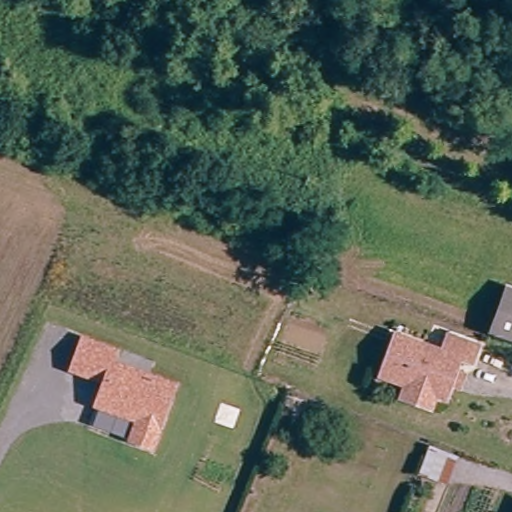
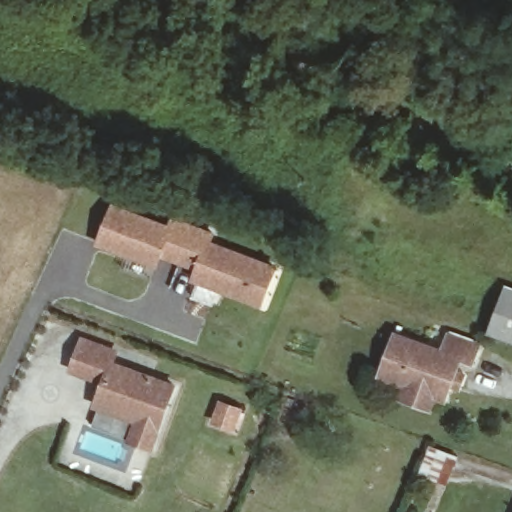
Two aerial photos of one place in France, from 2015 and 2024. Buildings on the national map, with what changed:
new [(172,218),(216,233),(213,243),(279,266),(264,309),(191,282),(196,270),(163,259),(159,269),(97,245),(113,204),(169,226),(172,218)]
unchanged [(493,333),(510,285),(512,286),(512,340),(493,333)]
unchanged [(81,336),(118,349),(115,360),(176,383),(153,451),(126,443),(133,423),(92,409),(101,384),(67,373),(81,336)]
unchanged [(395,398),(400,386),(377,377),(393,336),(439,353),(445,337),(476,349),(469,365),(457,361),(452,373),(465,378),(460,392),(447,387),(441,401),(430,397),(425,409),(395,398)]

